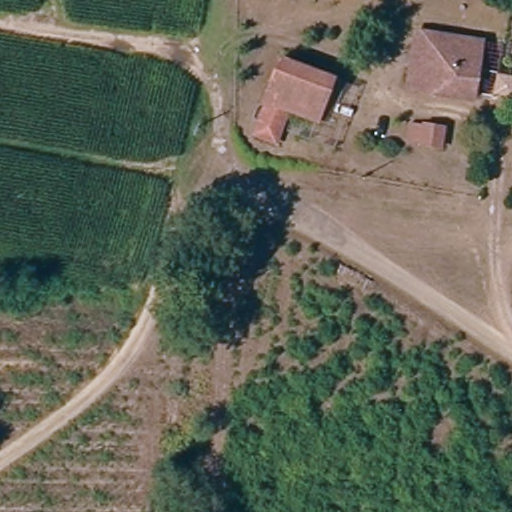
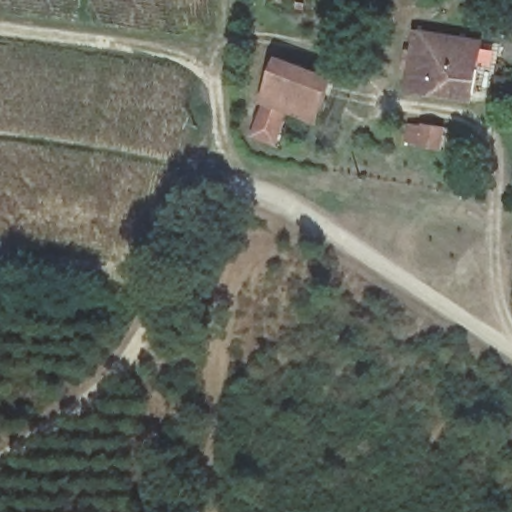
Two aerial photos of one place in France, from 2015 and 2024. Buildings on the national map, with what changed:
unchanged [(416,50),(420,31),(443,36),(485,45),(475,96),(437,89),(408,83),(416,50)]
unchanged [(279,57),(332,77),(322,104),(270,84),(279,57)]
unchanged [(252,137),(264,103),(270,84),(322,104),(315,122),(289,113),(277,146),(252,137)]
unchanged [(437,136),(437,156),(409,156),(408,136),(437,136)]

